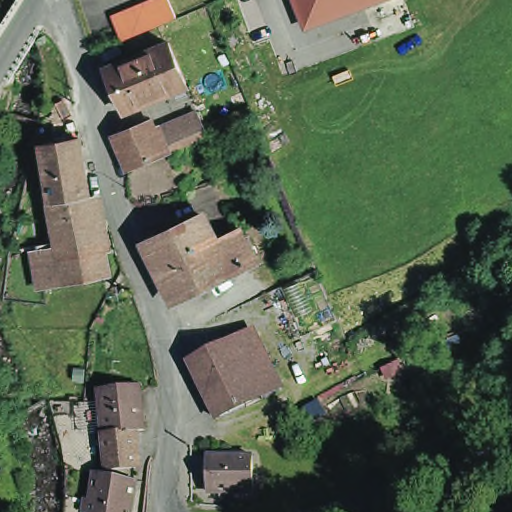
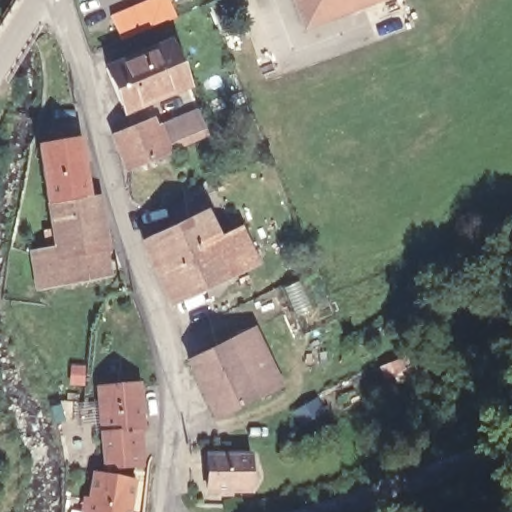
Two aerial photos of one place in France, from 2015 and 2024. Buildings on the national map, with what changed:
unchanged [(168,0),(175,17),(119,40),(110,15),(144,0),(168,0)]
unchanged [(288,0),(388,0),(302,32),(288,0)]
unchanged [(122,113),(105,69),(165,44),(183,87),(122,113)]
unchanged [(171,147),(160,124),(198,107),(210,131),(171,147)]
unchanged [(153,116),(159,129),(167,149),(130,166),(121,144),(116,131),(153,116)]
unchanged [(78,135),(87,191),(46,197),(37,141),(78,135)]
unchanged [(60,280),(35,284),(30,247),(53,242),(46,197),(87,191),(96,248),(100,272),(60,280)]
unchanged [(175,303),(162,276),(150,252),(152,243),(177,232),(207,221),(216,237),(222,249),(243,239),(256,265),(242,272),(192,295),(175,303)]
unchanged [(232,338),(245,372),(250,370),(262,396),(215,418),(187,360),(232,338)]
unchanged [(102,464),(100,449),(97,384),(115,382),(137,380),(140,412),(140,422),(128,423),(132,462),(102,464)]
unchanged [(205,454),(213,453),(249,455),(247,493),(235,493),(205,491),(205,454)]
unchanged [(126,512),(101,512),(84,510),(90,468),(132,476),(126,512)]
unchanged [(84,510),(101,512),(84,512),(84,510)]

